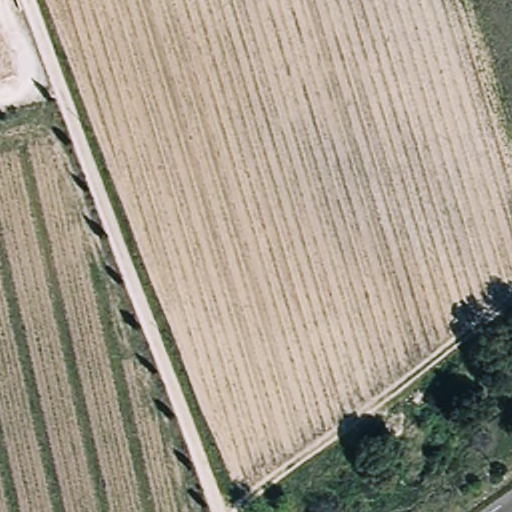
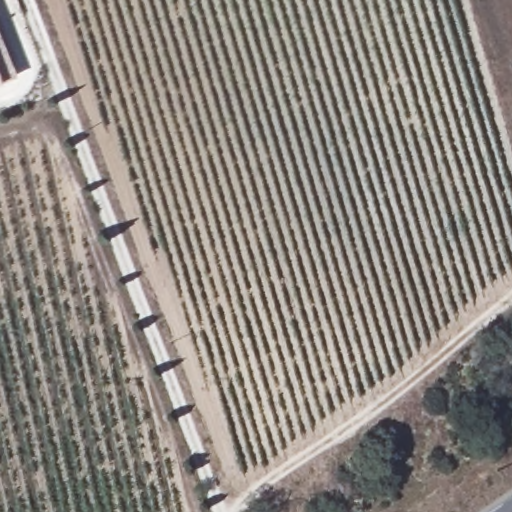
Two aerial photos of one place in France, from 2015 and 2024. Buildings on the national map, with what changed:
unchanged [(0,74),(0,22),(16,69),(0,74)]

